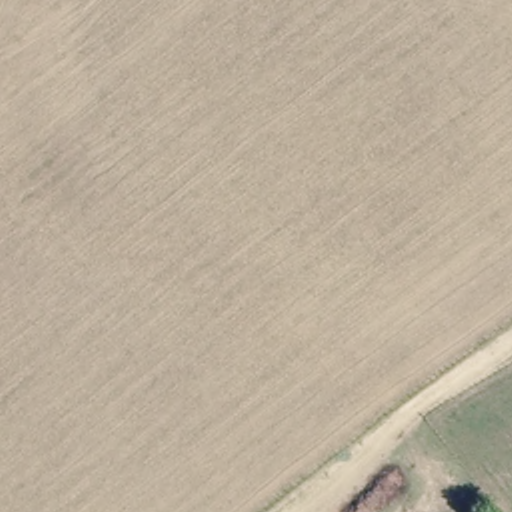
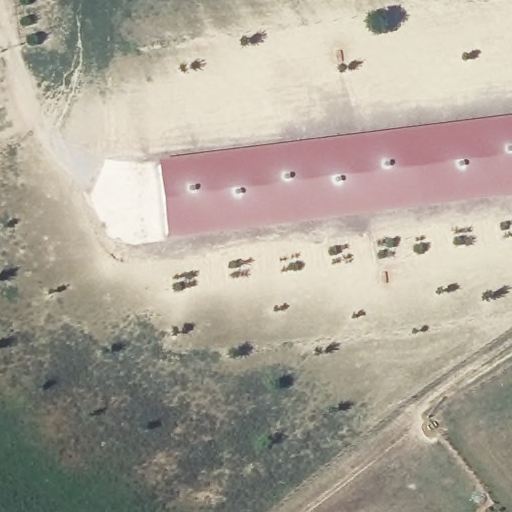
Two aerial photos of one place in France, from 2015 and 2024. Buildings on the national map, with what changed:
new [(252,147),(448,125),(512,116),(512,195),(450,203),(400,210),(167,238),(157,164),(211,153),(252,147)]

